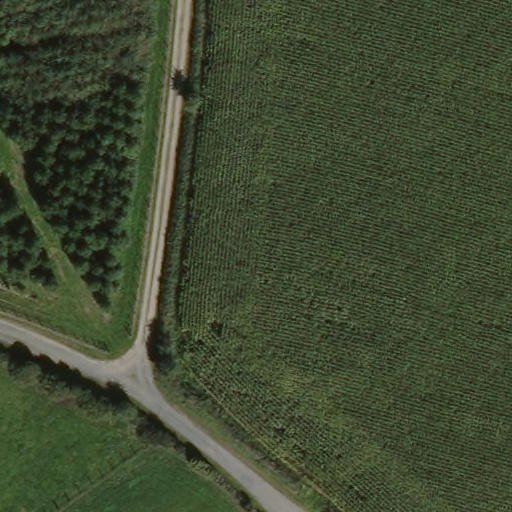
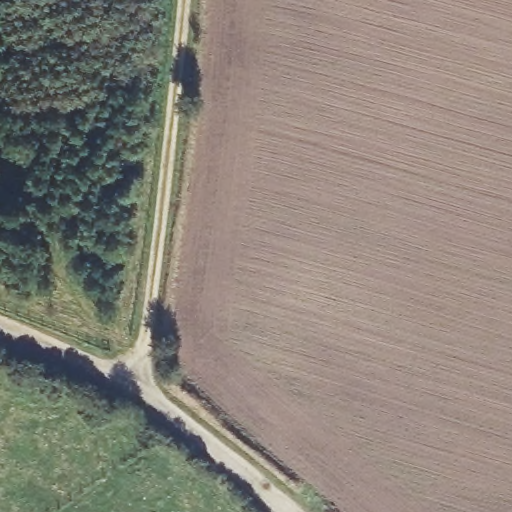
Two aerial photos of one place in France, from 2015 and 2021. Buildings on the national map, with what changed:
[]

